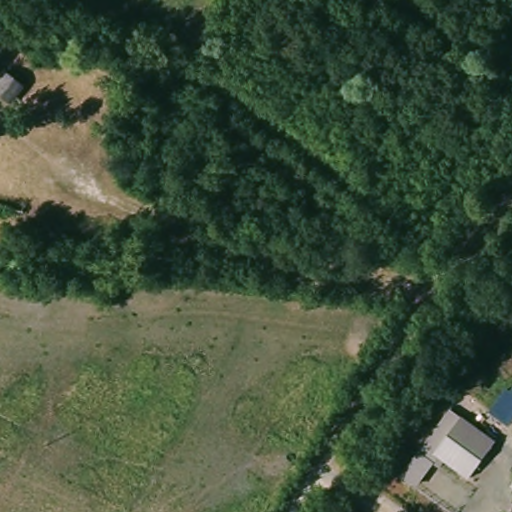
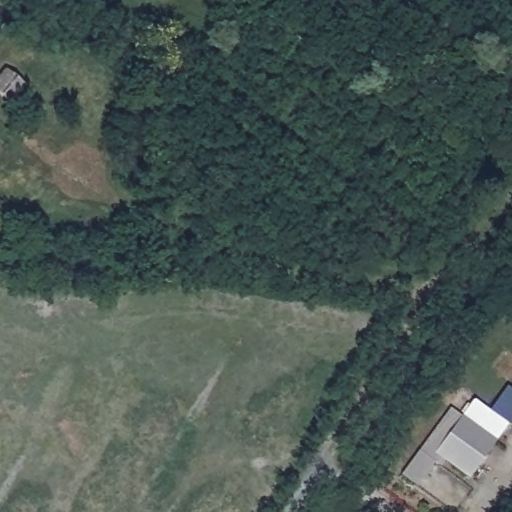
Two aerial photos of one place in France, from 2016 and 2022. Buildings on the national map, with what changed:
unchanged [(497,438),(470,480),(444,461),(439,468),(435,465),(418,488),(400,475),(450,407),(497,438)]

